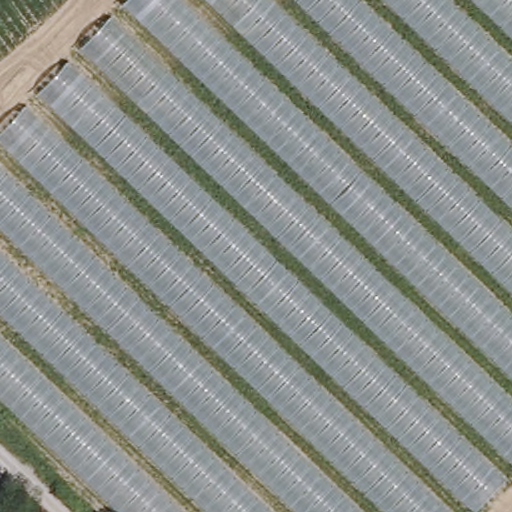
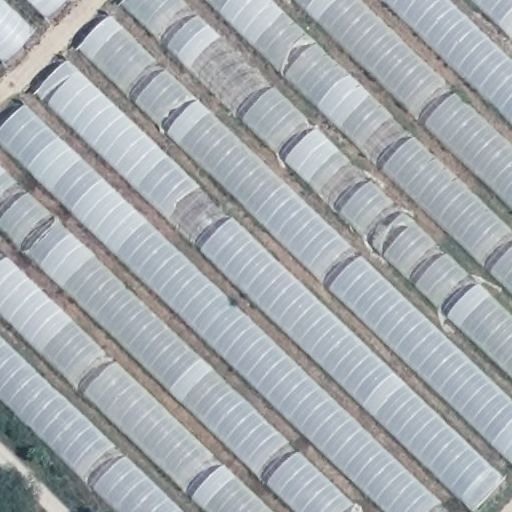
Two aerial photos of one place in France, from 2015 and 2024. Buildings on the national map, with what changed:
new [(0,65),(0,0),(62,0),(0,65)]
unchanged [(129,0),(512,0),(512,471),(472,512),(124,512),(0,394),(0,134),(129,0)]
unchanged [(24,512),(3,512),(14,499),(24,512)]

